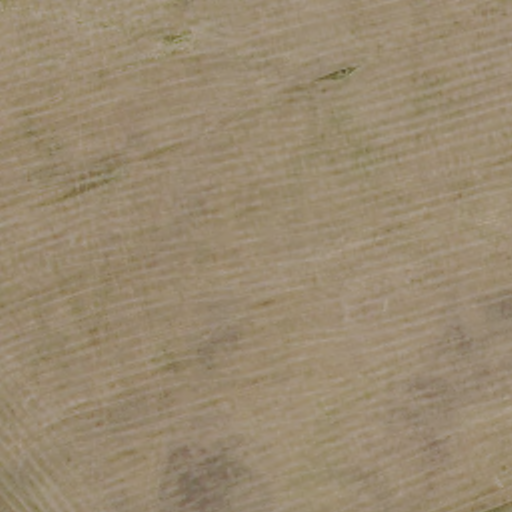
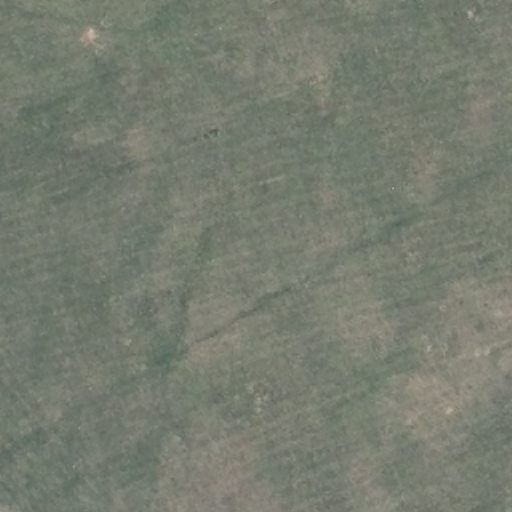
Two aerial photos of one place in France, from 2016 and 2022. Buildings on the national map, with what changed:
[]

